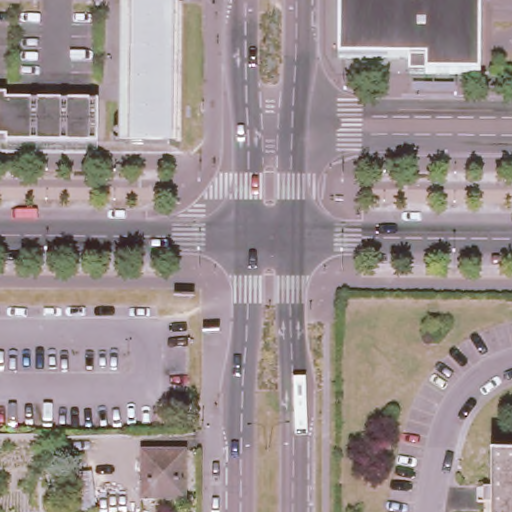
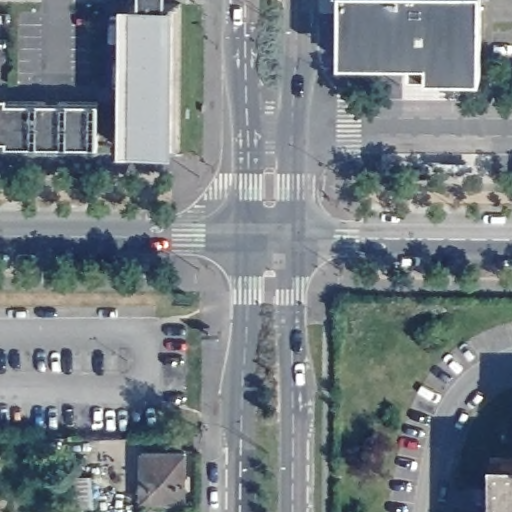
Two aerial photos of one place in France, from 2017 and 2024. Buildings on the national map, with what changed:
unchanged [(164,7),(181,7),(179,151),(129,150),(129,7),(138,7),(139,0),(164,0),(164,7)]
unchanged [(339,0),(480,0),(479,75),(426,74),(426,59),(339,57),(339,0)]
unchanged [(97,144),(3,144),(3,139),(0,139),(0,96),(4,96),(4,101),(96,101),(97,144)]
unchanged [(147,500),(146,453),(189,453),(188,500),(147,500)]
unchanged [(512,459),(512,512),(491,512),(492,459),(512,459)]

